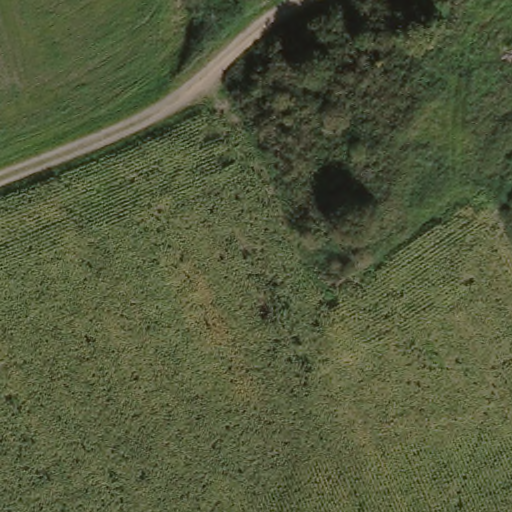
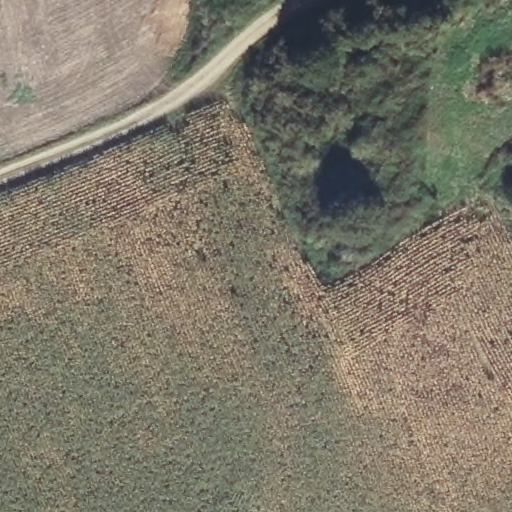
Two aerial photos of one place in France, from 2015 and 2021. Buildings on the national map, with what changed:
[]

